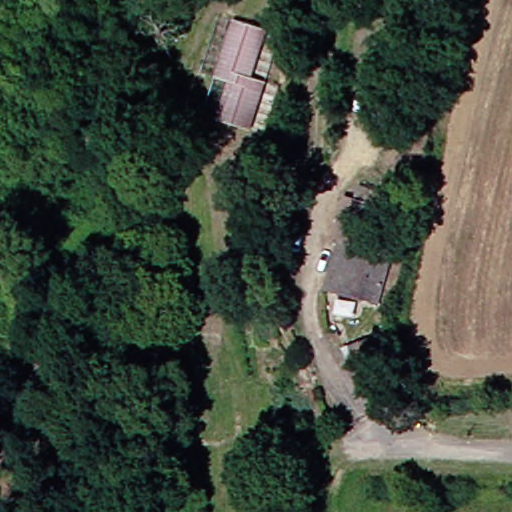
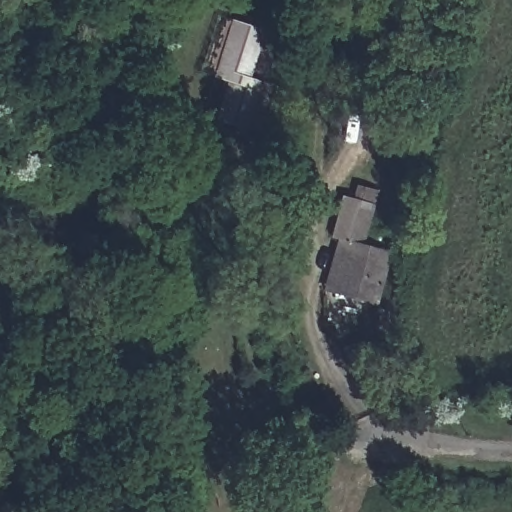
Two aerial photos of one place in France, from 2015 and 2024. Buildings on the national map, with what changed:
unchanged [(261,56),(253,82),(264,86),(250,131),(218,122),(229,82),(213,77),(225,47),(261,56)]
unchanged [(393,209),(370,302),(307,285),(329,196),(393,209)]
unchanged [(333,374),(343,367),(334,356),(350,344),(371,373),(355,385),(345,392),(333,374)]
unchanged [(260,455),(262,445),(275,447),(272,471),(258,468),(243,466),(246,452),(260,455)]

